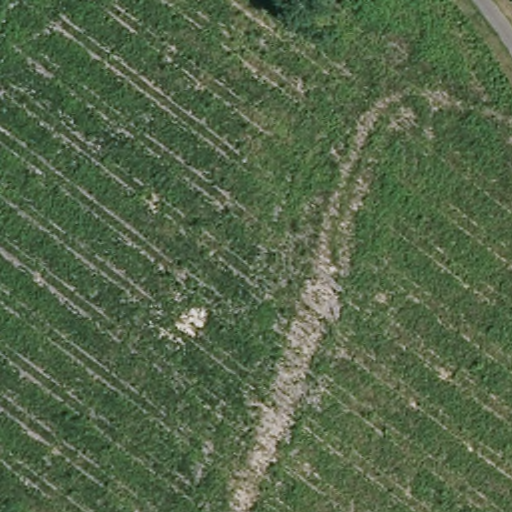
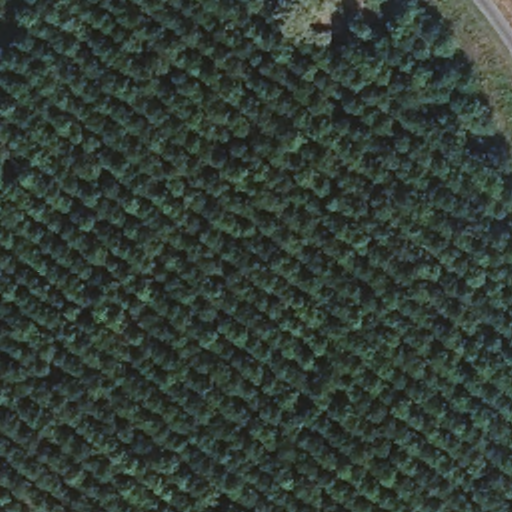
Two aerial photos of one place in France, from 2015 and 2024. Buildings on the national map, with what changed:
[]

